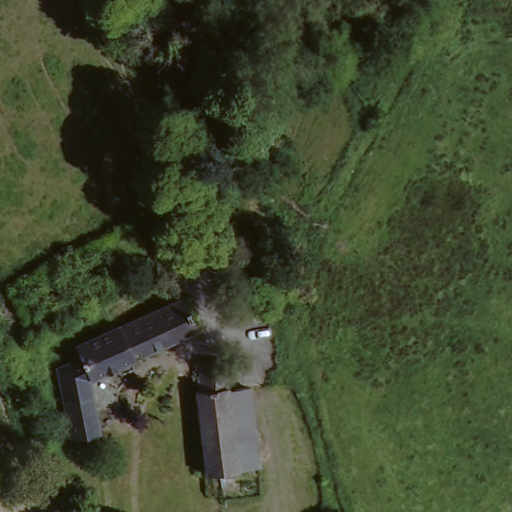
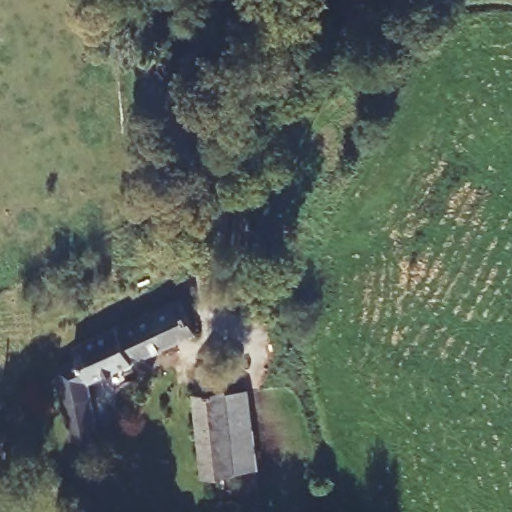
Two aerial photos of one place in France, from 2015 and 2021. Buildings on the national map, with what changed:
unchanged [(195,337),(89,389),(91,406),(98,441),(73,447),(65,410),(57,376),(72,354),(177,303),(195,337)]
unchanged [(243,392),(256,470),(200,477),(191,399),(195,369),(227,364),(223,393),(243,392)]

